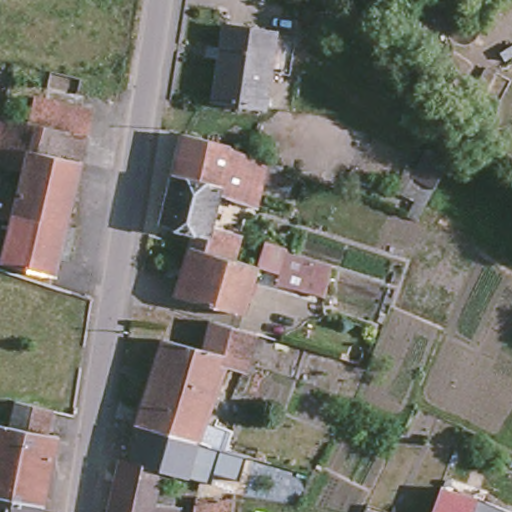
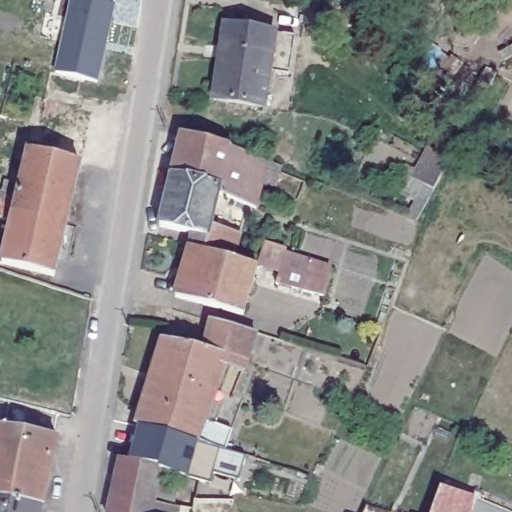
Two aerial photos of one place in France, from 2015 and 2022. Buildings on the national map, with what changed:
new [(98,79),(54,71),(69,0),(111,0),(115,1),(98,79)]
unchanged [(284,34),(281,57),(274,56),(266,107),(216,100),(228,26),(284,34)]
unchanged [(474,95),(484,100),(473,121),(463,115),(474,95)]
unchanged [(36,121),(40,96),(88,107),(83,131),(36,121)]
unchanged [(0,112),(36,121),(83,131),(76,158),(24,146),(19,167),(0,163),(0,112)]
unchanged [(233,310),(166,292),(171,276),(181,242),(183,230),(150,221),(173,130),(221,142),(259,157),(247,203),(209,191),(201,221),(231,230),(225,254),(248,262),(233,310)]
unchanged [(8,217),(0,215),(0,198),(11,201),(19,167),(24,146),(76,158),(62,221),(50,271),(0,259),(0,246),(1,246),(8,217)]
unchanged [(419,221),(409,217),(421,194),(411,188),(431,150),(451,161),(429,199),(427,207),(419,221)]
unchanged [(316,290),(301,287),(268,278),(276,247),(308,257),(322,262),(316,290)]
unchanged [(244,372),(226,364),(228,357),(206,350),(213,321),(256,333),(244,372)]
unchanged [(206,350),(228,357),(226,364),(216,390),(153,370),(163,339),(206,350)]
unchanged [(131,462),(136,425),(152,375),(153,370),(216,390),(206,421),(233,431),(226,450),(216,447),(212,457),(194,451),(188,478),(161,470),(131,462)]
unchanged [(13,409),(8,408),(9,400),(14,401),(15,397),(51,406),(46,429),(58,431),(43,501),(41,512),(0,512),(0,420),(10,422),(13,409)]
unchanged [(173,506),(180,507),(179,512),(110,512),(122,458),(131,462),(161,470),(156,487),(176,492),(173,506)]
unchanged [(440,488),(477,498),(472,512),(432,512),(440,488)]
unchanged [(370,500),(394,510),(393,512),(364,512),(370,500)]
unchanged [(180,507),(193,510),(195,501),(196,501),(233,501),(232,512),(179,512),(180,507)]

